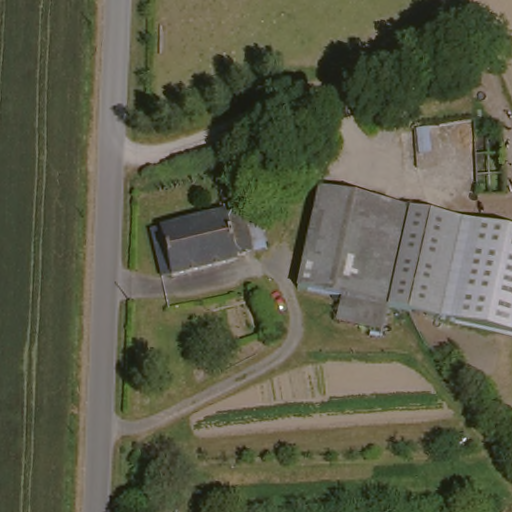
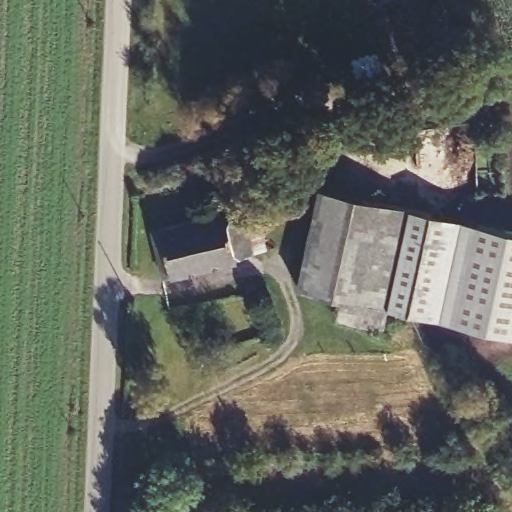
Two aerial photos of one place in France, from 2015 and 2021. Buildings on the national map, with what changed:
unchanged [(237,168),(250,165),(257,197),(246,200),(237,168)]
unchanged [(318,179),(512,222),(512,333),(396,307),(344,296),(296,285),(318,179)]
unchanged [(164,219),(172,217),(235,204),(236,209),(255,205),(262,246),(243,250),(244,254),(180,266),(180,264),(171,266),(164,219)]
unchanged [(340,315),(344,296),(396,307),(391,326),(340,315)]

